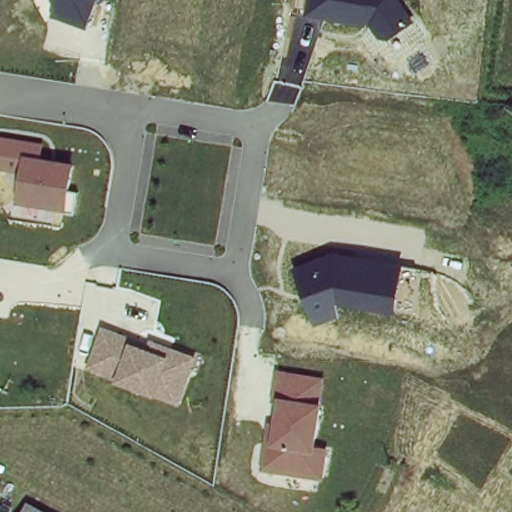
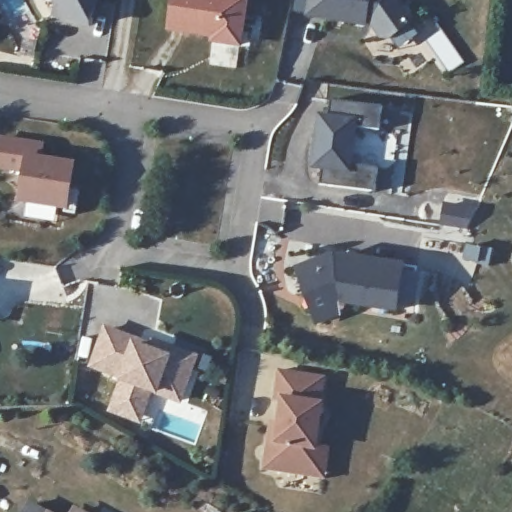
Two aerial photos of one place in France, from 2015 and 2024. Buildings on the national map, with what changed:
unchanged [(52,21),(53,12),(47,0),(100,0),(93,32),(52,21)]
new [(165,31),(170,0),(249,0),(240,47),(210,42),(211,37),(165,31)]
unchanged [(379,38),(371,24),(364,27),(305,17),(308,0),(399,0),(415,22),(389,40),(379,38)]
new [(378,129),(357,128),(352,167),(378,169),(375,192),(319,184),(321,170),(311,167),(319,114),(328,114),(330,101),(381,107),(378,129)]
unchanged [(44,146),(43,157),(74,163),(66,212),(15,202),(20,173),(0,170),(0,142),(1,138),(44,146)]
unchanged [(339,305),(341,317),(316,325),(294,268),(334,252),(404,262),(397,313),(339,305)]
unchanged [(200,357),(184,406),(87,369),(103,323),(200,357)]
unchanged [(314,447),(332,450),(327,482),(261,471),(280,371),(326,377),(314,447)]
unchanged [(34,502),(53,512),(28,512),(34,502)]

